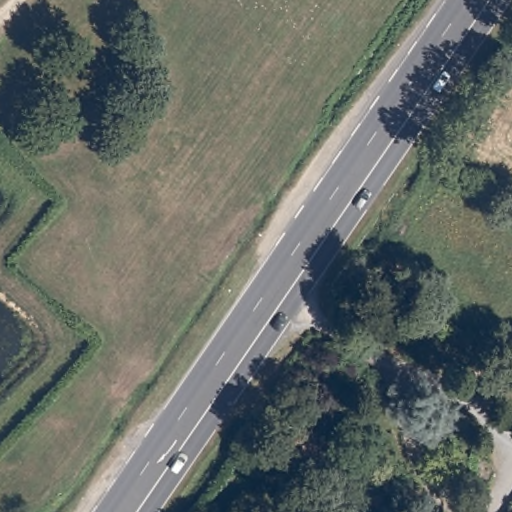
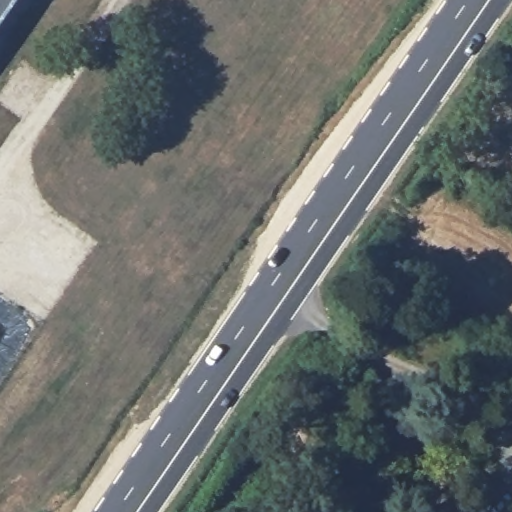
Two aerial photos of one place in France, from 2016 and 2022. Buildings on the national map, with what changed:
new [(0,21),(0,0),(14,0),(0,21)]
unchanged [(512,512),(511,512),(512,510),(512,512)]

